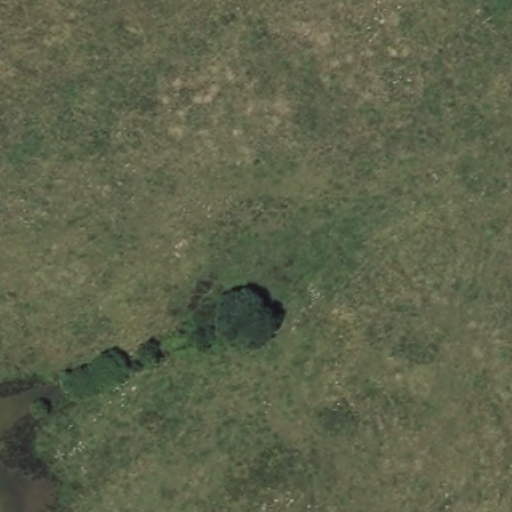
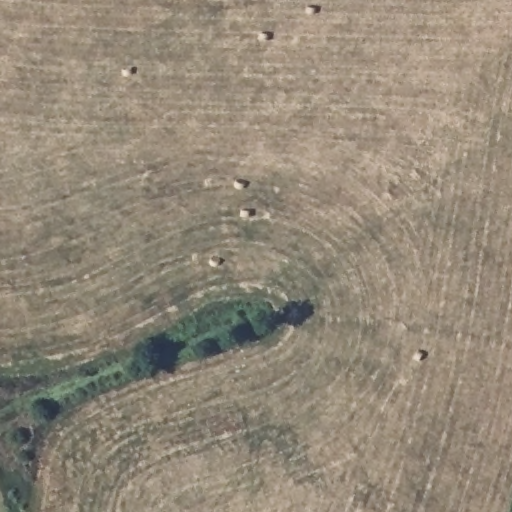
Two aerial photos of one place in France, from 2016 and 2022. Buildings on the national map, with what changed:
[]

